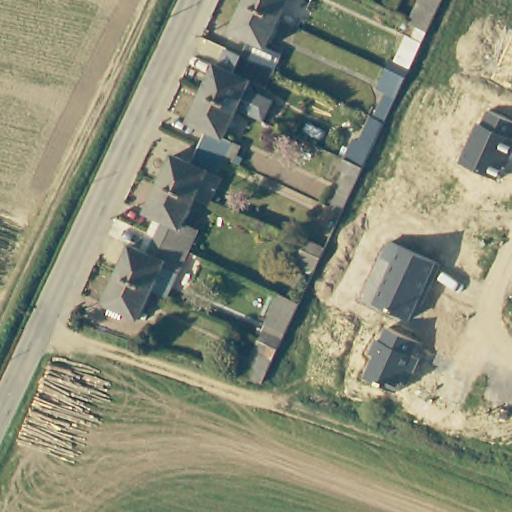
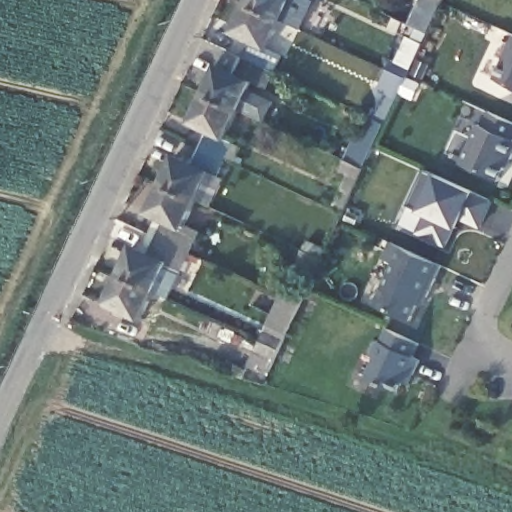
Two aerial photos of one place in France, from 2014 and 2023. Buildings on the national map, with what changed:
unchanged [(274,23),(243,8),(246,0),(284,0),(274,23)]
unchanged [(404,23),(414,0),(438,0),(424,32),(404,23)]
unchanged [(260,51),(270,56),(263,74),(234,61),(243,42),(230,36),(243,8),(274,23),(260,51)]
unchanged [(384,67),(404,23),(424,32),(403,76),(384,67)]
unchanged [(512,40),(512,90),(495,82),(512,40)]
unchanged [(257,92),(243,86),(230,113),(201,100),(221,54),(234,61),(263,74),(265,75),(257,92)]
unchanged [(343,158),(363,114),(384,67),(403,76),(381,123),(361,167),(349,191),(339,214),(321,206),(343,158)]
unchanged [(216,146),(226,150),(220,166),(195,154),(202,136),(188,129),(201,100),(230,113),(216,146)]
unchanged [(460,164),(478,125),(483,126),(489,112),(512,122),(512,156),(499,182),(460,164)]
unchanged [(213,181),(201,176),(189,203),(160,189),(173,162),(189,169),(195,154),(220,166),(213,181)]
new [(481,229),(463,220),(446,246),(417,233),(428,214),(420,211),(409,206),(426,170),(493,200),(481,229)]
unchanged [(179,254),(153,241),(160,226),(147,219),(160,189),(189,203),(200,209),(179,254)]
unchanged [(131,251),(145,258),(153,241),(179,254),(158,298),(148,293),(118,278),(131,251)]
unchanged [(299,251),(304,241),(322,249),(317,260),(313,271),(293,262),(299,251)]
unchanged [(412,322),(374,305),(393,264),(380,258),(388,243),(440,267),(412,322)]
unchanged [(148,293),(134,324),(104,309),(118,278),(148,293)]
unchanged [(259,341),(280,297),(297,305),(276,349),(261,382),(243,376),(259,341)]
unchanged [(413,357),(421,361),(410,387),(399,383),(394,394),(365,383),(375,357),(372,355),(386,329),(419,344),(413,357)]

